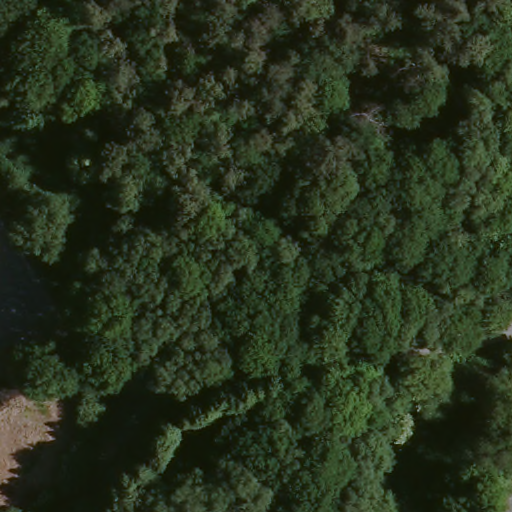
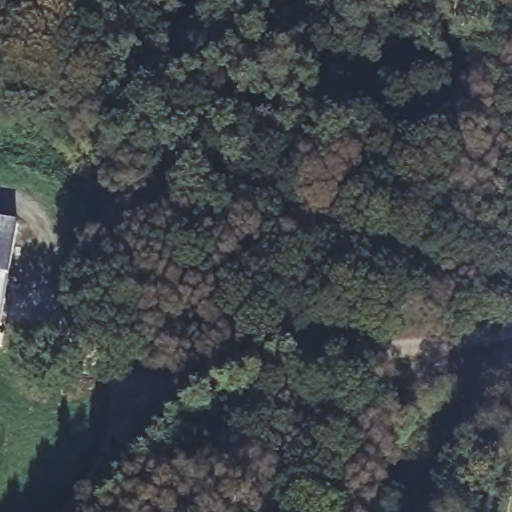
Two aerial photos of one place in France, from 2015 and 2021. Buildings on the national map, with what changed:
new [(16,223),(0,322),(0,221),(16,223)]

